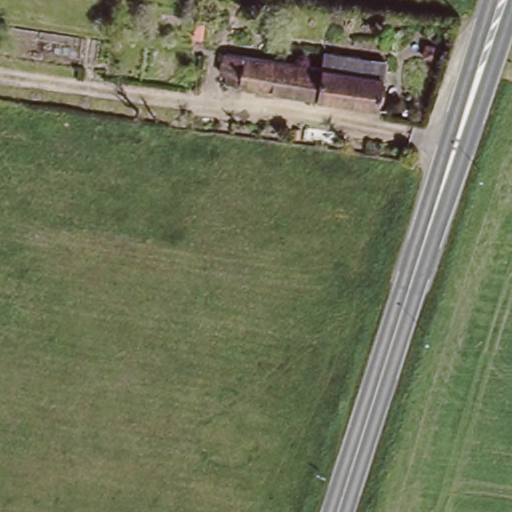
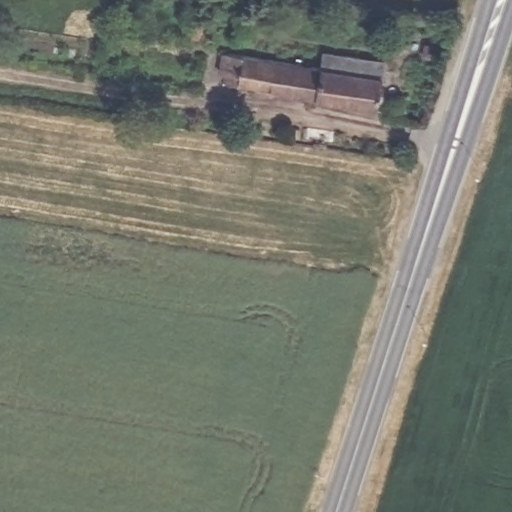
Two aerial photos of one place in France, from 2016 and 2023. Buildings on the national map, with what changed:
unchanged [(385,105),(233,79),(235,69),(227,68),(230,50),(240,51),(241,38),(242,35),(270,39),(269,44),(267,56),(390,74),(385,105)]

